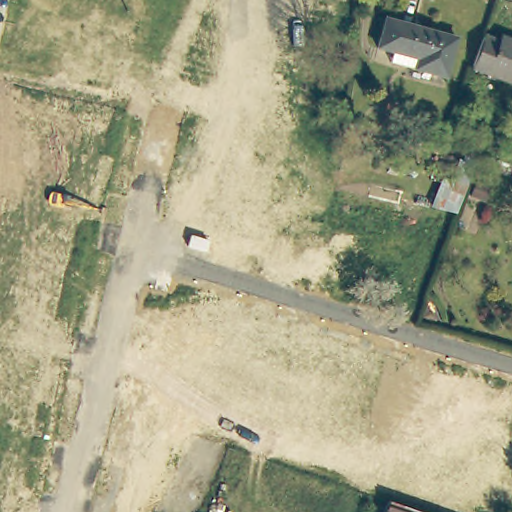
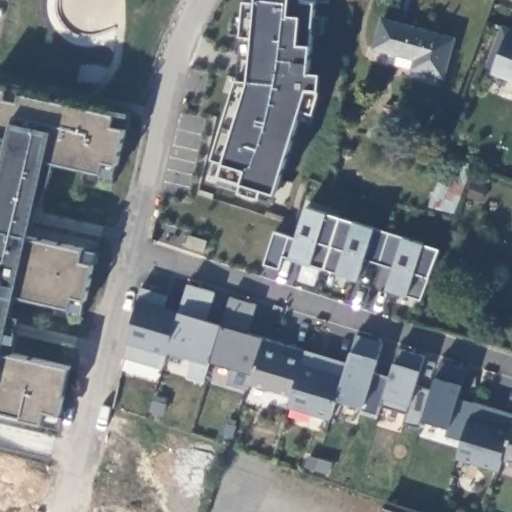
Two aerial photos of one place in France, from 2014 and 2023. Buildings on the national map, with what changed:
new [(262,190),(260,197),(240,190),(243,181),(220,175),(225,158),(214,157),(237,79),(242,35),(245,0),(303,0),(316,2),(312,44),(310,71),(322,72),(321,89),(314,111),(302,104),(276,191),(262,190)]
demolished [(280,24),(245,20),(242,20),(243,0),(282,0),(280,24)]
unchanged [(451,36),(440,75),(409,67),(412,56),(372,46),(380,16),(451,36)]
demolished [(173,104),(166,106),(157,81),(211,64),(210,17),(221,17),(233,17),(233,19),(234,80),(234,84),(200,95),(207,113),(180,123),(173,104)]
demolished [(280,24),(273,102),(272,102),(237,98),(245,20),(280,24)]
new [(496,67),(487,64),(501,29),(509,31),(512,33),(512,79),(494,73),(496,67)]
demolished [(496,33),(512,40),(512,56),(503,80),(469,66),(482,33),(494,38),(496,33)]
demolished [(512,56),(512,84),(503,80),(512,56)]
new [(57,427),(0,415),(0,177),(6,152),(0,151),(0,86),(129,115),(113,175),(47,161),(28,237),(98,250),(85,311),(15,296),(2,355),(68,367),(57,427)]
new [(422,299),(408,296),(385,289),(393,265),(366,256),(359,281),(337,273),(311,264),(290,257),(284,257),(280,267),(265,263),(275,232),(297,237),(307,205),(375,228),(425,244),(440,249),(422,299)]
new [(178,312),(188,285),(216,293),(207,319),(222,324),(211,362),(206,378),(205,383),(189,378),(193,365),(186,356),(167,350),(178,312)]
new [(142,286),(170,294),(165,308),(178,312),(167,350),(161,369),(123,357),(142,286)]
new [(231,297),(259,304),(247,333),(263,337),(253,373),(251,382),(250,384),(249,390),(227,384),(206,378),(211,362),(222,324),(231,297)]
new [(351,352),(359,336),(384,343),(378,362),(375,374),(387,378),(376,415),(365,408),(337,400),(351,352)]
new [(304,350),(290,396),(250,384),(251,382),(253,373),(263,337),(304,350)]
new [(304,350),(345,362),(328,418),(288,408),(290,396),(304,350)]
new [(384,397),(395,362),(400,350),(424,357),(421,370),(417,388),(432,391),(420,429),(403,423),(406,413),(383,406),(384,397)]
new [(432,391),(438,375),(442,361),(468,369),(463,384),(458,396),(473,401),(461,440),(445,435),(448,427),(422,421),(432,391)]
new [(512,430),(501,471),(456,456),(473,401),(512,412),(512,430)]
new [(512,440),(512,461),(506,459),(512,440)]
demolished [(8,463),(28,469),(22,496),(1,489),(8,463)]
unchanged [(386,507),(387,504),(410,512),(384,512),(386,509),(386,507)]

